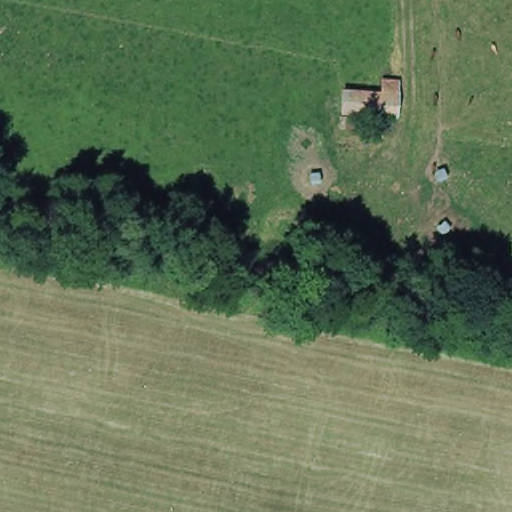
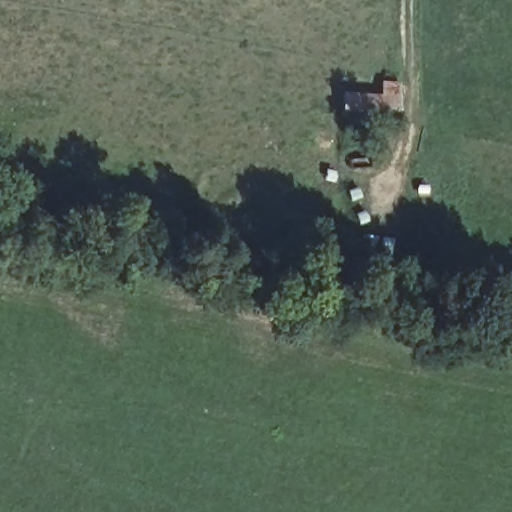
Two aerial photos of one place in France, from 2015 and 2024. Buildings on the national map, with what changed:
unchanged [(380,95),(382,83),(398,84),(396,121),(342,116),(343,92),(380,95)]

